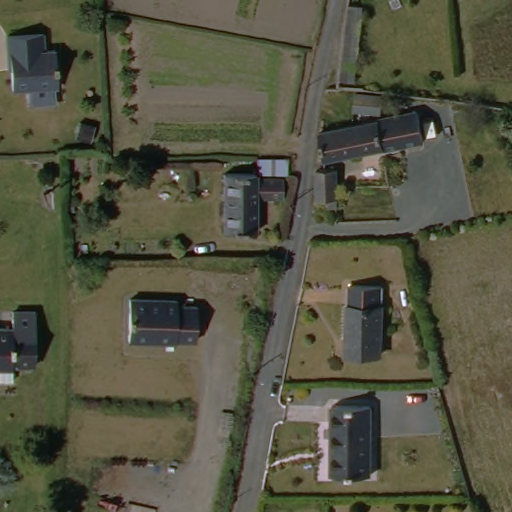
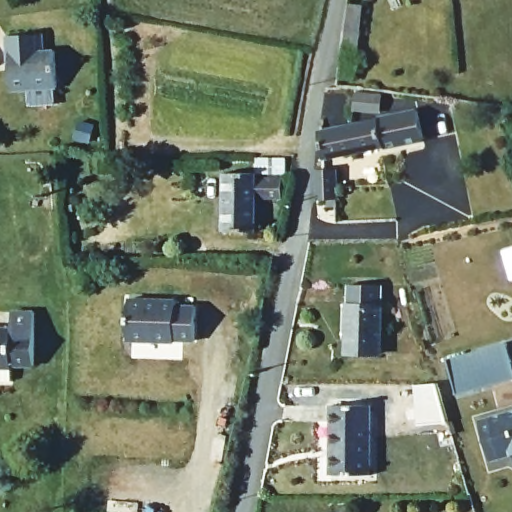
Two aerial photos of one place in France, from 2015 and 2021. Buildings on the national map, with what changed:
unchanged [(363,8),(363,12),(353,81),(341,81),(339,81),(348,6),(363,8)]
unchanged [(36,38),(36,55),(53,55),(53,95),(3,94),(0,44),(0,35),(36,38)]
unchanged [(383,125),(416,125),(422,125),(421,154),(412,155),(323,155),(320,128),(321,125),(383,125)]
unchanged [(292,173),(261,173),(261,158),(292,157),(292,173)]
unchanged [(339,167),(339,199),(318,199),(319,168),(329,167),(339,167)]
unchanged [(229,174),(261,174),(261,178),(288,179),(288,199),(260,199),(259,233),(227,233),(229,174)]
unchanged [(351,294),(381,296),(382,341),(349,340),(351,294)]
unchanged [(163,301),(163,307),(183,307),(183,341),(163,341),(163,343),(116,343),(116,301),(163,301)]
unchanged [(0,376),(0,324),(16,324),(16,328),(37,328),(37,359),(16,359),(16,363),(16,376),(0,376)]
new [(512,362),(512,379),(456,393),(449,361),(508,345),(512,362)]
unchanged [(329,404),(370,402),(374,477),(333,481),(329,404)]
new [(512,411),(512,455),(493,460),(481,419),(512,411)]

